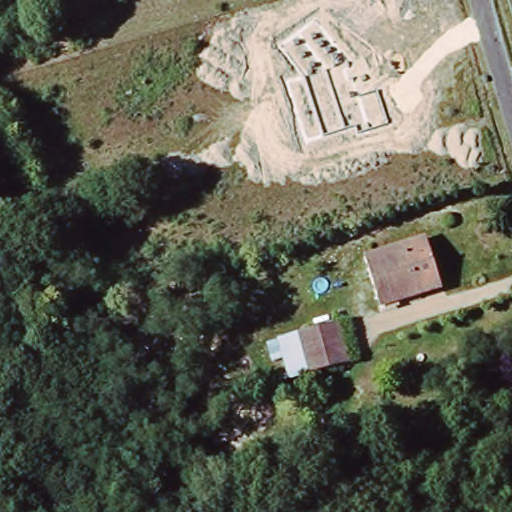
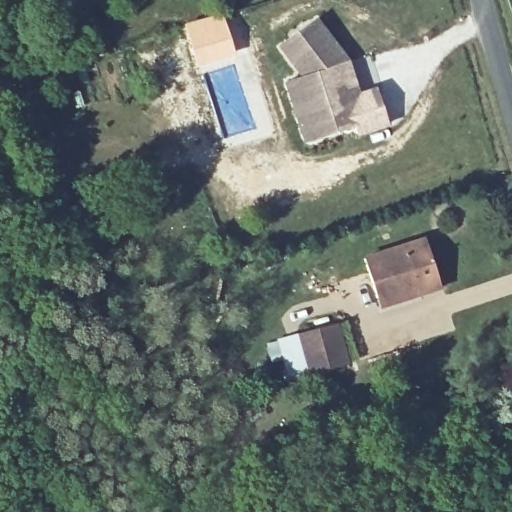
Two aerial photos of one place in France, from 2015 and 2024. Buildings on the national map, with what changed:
new [(222,11),(236,55),(197,68),(183,23),(222,11)]
new [(284,84),(300,77),(280,49),(317,19),(350,61),(360,93),(377,88),(389,126),(357,136),(355,127),(303,144),(284,84)]
unchanged [(377,296),(365,260),(426,241),(441,288),(420,295),(380,308),(377,296)]
unchanged [(343,365),(305,374),(295,334),(333,325),(343,365)]

